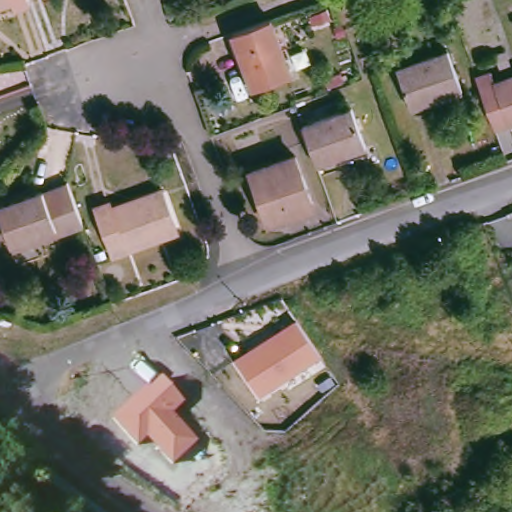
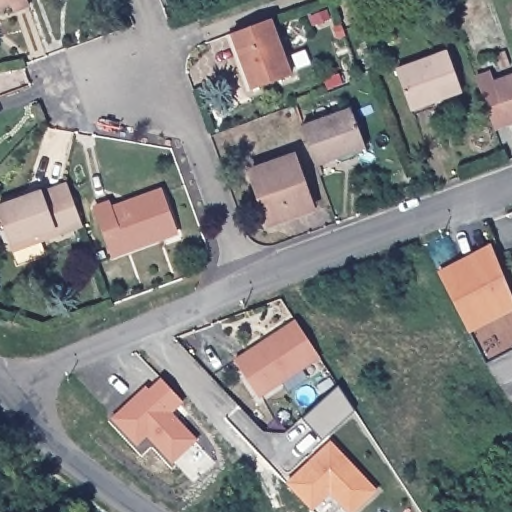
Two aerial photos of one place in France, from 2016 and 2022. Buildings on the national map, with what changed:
unchanged [(14,8),(11,1),(0,5),(0,0),(28,0),(29,4),(14,8)]
unchanged [(293,76),(244,92),(226,37),(272,21),(293,76)]
unchanged [(457,90),(409,107),(395,69),(443,51),(457,90)]
unchanged [(502,120),(488,81),(512,72),(512,117),(502,120)]
unchanged [(365,151),(316,169),(302,129),(351,111),(365,151)]
unchanged [(313,211),(288,221),(286,217),(265,225),(248,178),(294,161),(313,211)]
unchanged [(11,252),(0,220),(0,211),(43,195),(45,197),(65,191),(79,229),(11,252)]
unchanged [(179,234),(113,256),(96,207),(115,201),(118,209),(166,192),(179,234)]
new [(512,296),(512,311),(471,332),(439,272),(491,243),(512,296)]
unchanged [(263,398),(238,358),(298,318),(323,356),(263,398)]
unchanged [(148,385),(151,386),(161,376),(184,401),(173,411),(198,438),(173,462),(148,436),(138,444),(113,416),(148,385)]
new [(340,385),(356,410),(324,442),(304,417),(340,385)]
new [(378,490),(355,512),(347,512),(331,495),(314,510),(287,482),(331,441),(378,490)]

